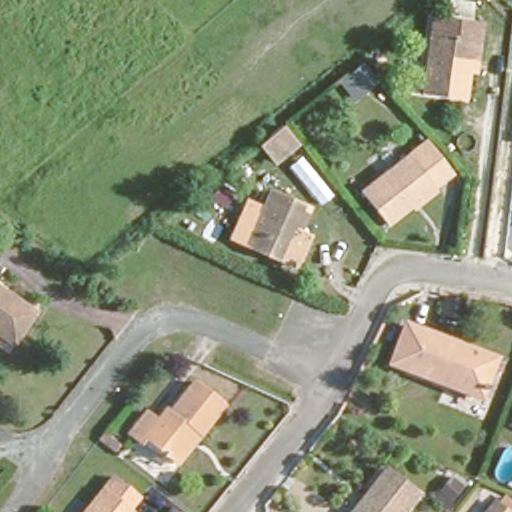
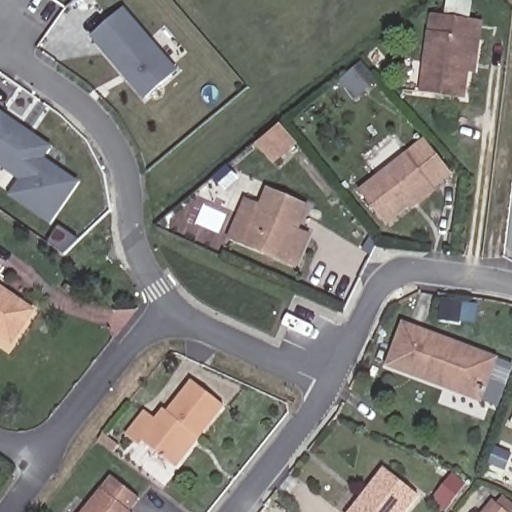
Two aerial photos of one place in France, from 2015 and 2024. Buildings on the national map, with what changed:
new [(124,10),(177,69),(143,100),(89,37),(124,10)]
unchanged [(428,90),(436,10),(484,15),(482,30),(473,30),(466,94),(428,90)]
new [(44,159),(78,182),(50,225),(8,197),(19,180),(0,166),(0,112),(51,147),(44,159)]
unchanged [(299,140),(274,160),(251,138),(279,112),(299,140)]
unchanged [(363,187),(419,136),(446,166),(389,217),(363,187)]
unchanged [(244,235),(269,184),(306,200),(294,225),(300,229),(287,255),(278,251),(244,235)]
unchanged [(0,291),(29,311),(6,341),(0,337),(0,291)]
unchanged [(443,384),(388,360),(404,321),(494,360),(482,390),(477,399),(443,384)]
unchanged [(190,432),(169,462),(141,441),(135,447),(122,437),(144,408),(155,416),(163,407),(169,411),(192,381),(220,403),(196,435),(190,432)]
unchanged [(376,467),(414,496),(401,512),(341,512),(376,467)]
unchanged [(106,472),(135,495),(124,508),(128,512),(75,512),(106,472)]
unchanged [(429,491),(434,482),(441,486),(436,495),(429,491)]
unchanged [(493,503),(504,512),(486,512),(493,503)]

